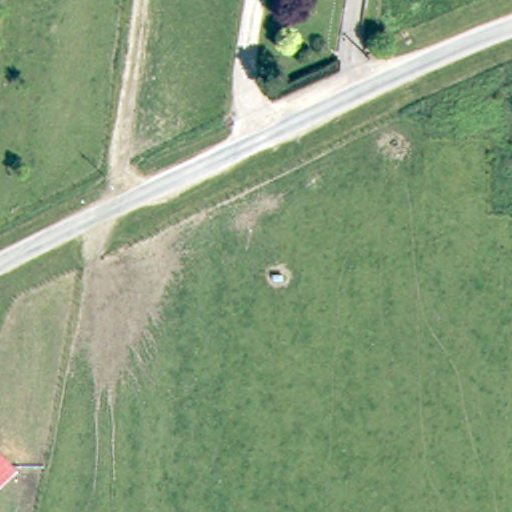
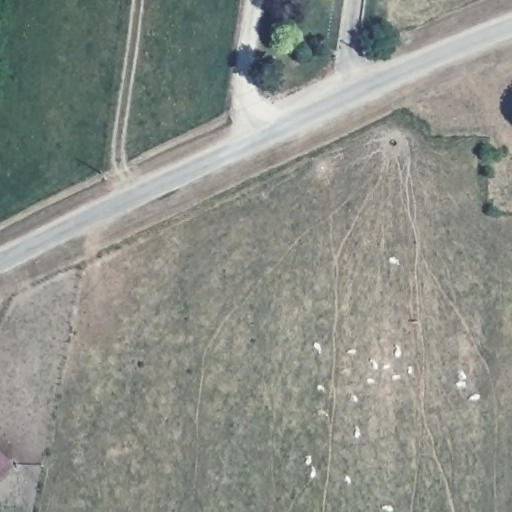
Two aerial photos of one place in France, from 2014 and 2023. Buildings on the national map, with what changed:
unchanged [(0,474),(0,414),(30,447),(0,474)]

